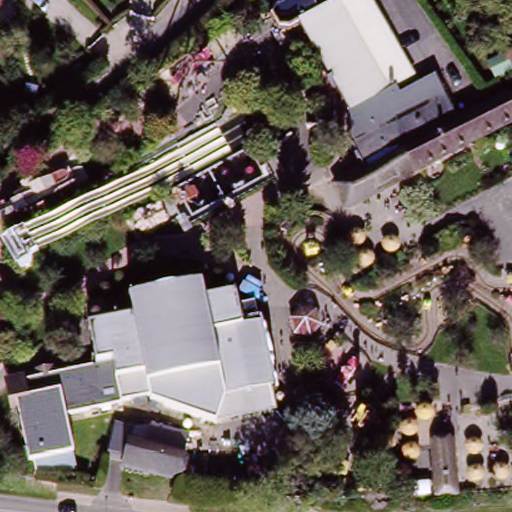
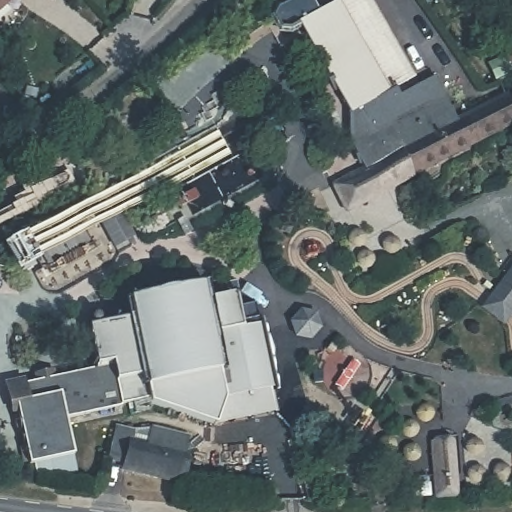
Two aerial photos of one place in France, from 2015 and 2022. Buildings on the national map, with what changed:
unchanged [(17,0),(0,14),(0,0),(17,0)]
unchanged [(311,0),(370,0),(403,64),(337,96),(292,10),(311,0)]
unchanged [(403,64),(430,115),(365,148),(337,96),(403,64)]
unchanged [(469,95),(479,112),(512,94),(512,133),(502,139),(501,137),(402,185),(405,194),(384,204),(382,201),(362,210),(347,178),(374,165),(365,148),(430,115),(469,95)]
new [(480,311),(512,266),(512,314),(504,326),(480,311)]
unchanged [(7,387),(88,367),(85,342),(137,335),(132,324),(256,300),(275,391),(67,432),(72,463),(25,466),(7,387)]
unchanged [(120,473),(127,437),(147,441),(148,428),(194,437),(180,486),(120,473)]
unchanged [(430,500),(427,438),(457,437),(462,501),(430,500)]

